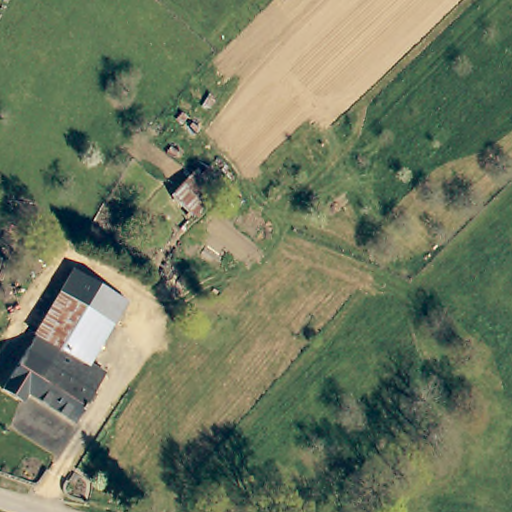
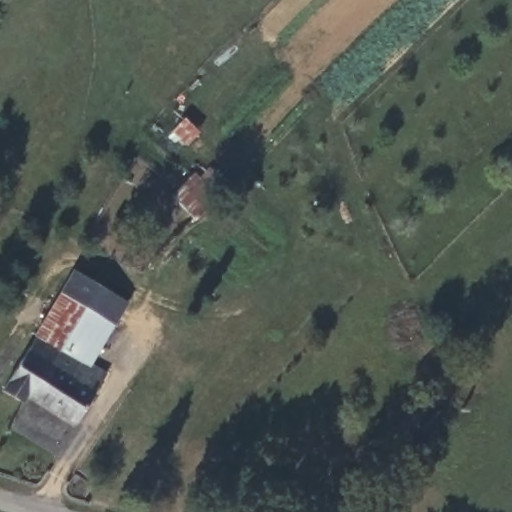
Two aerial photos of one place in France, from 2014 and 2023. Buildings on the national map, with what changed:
unchanged [(197,214),(175,192),(184,182),(206,205),(197,214)]
unchanged [(105,378),(75,429),(53,416),(23,397),(16,407),(0,396),(0,393),(37,336),(60,351),(84,313),(57,299),(71,277),(118,305),(125,308),(110,331),(88,368),(105,378)]

